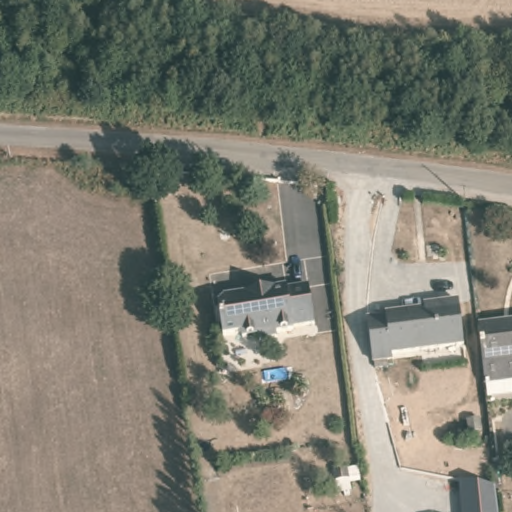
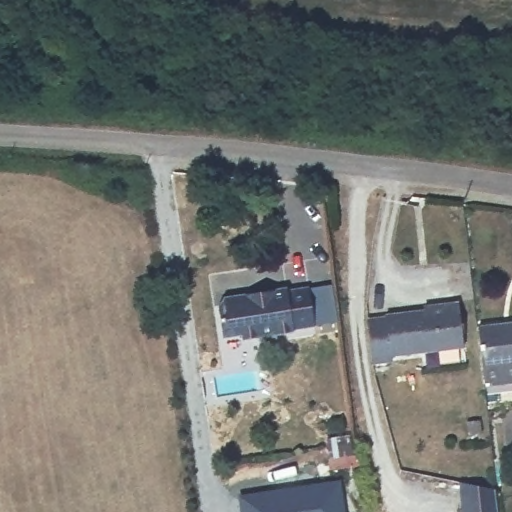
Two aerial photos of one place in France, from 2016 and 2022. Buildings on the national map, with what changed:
unchanged [(296,330),(277,333),(278,340),(261,342),(260,335),(246,338),(245,332),(223,335),(218,305),(227,295),(299,284),(300,287),(314,285),(319,323),(305,325),(296,326),(296,330)]
unchanged [(382,317),(428,311),(427,306),(455,303),(460,348),(391,357),(391,361),(368,363),(363,324),(383,321),(382,317)]
unchanged [(485,363),(480,322),(512,319),(512,379),(487,382),(485,363)]
new [(347,512),(242,512),(238,495),(342,480),(347,512)]
unchanged [(460,482),(493,488),(496,512),(461,512),(460,482)]

